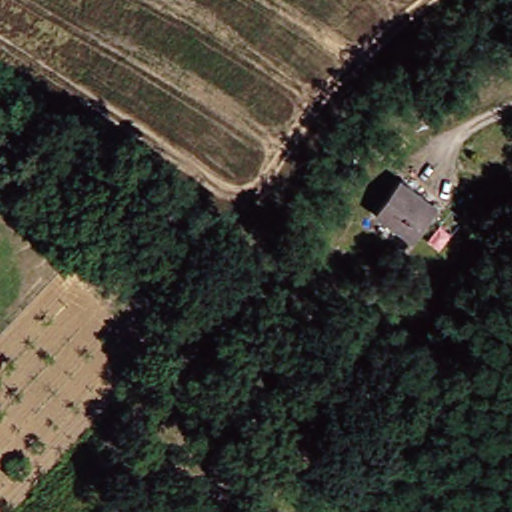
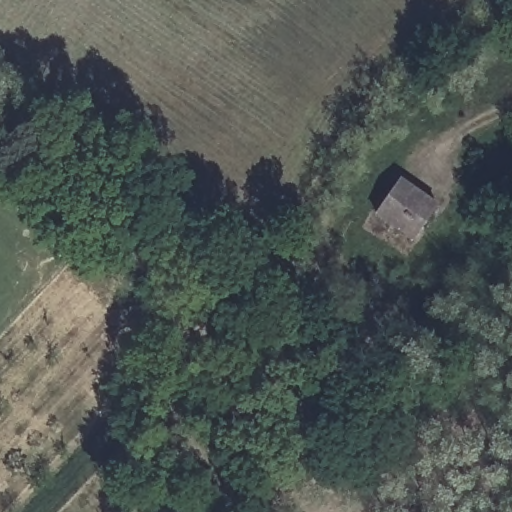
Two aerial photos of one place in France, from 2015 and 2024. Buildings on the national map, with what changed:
unchanged [(424,201),(401,236),(361,208),(385,174),(424,201)]

